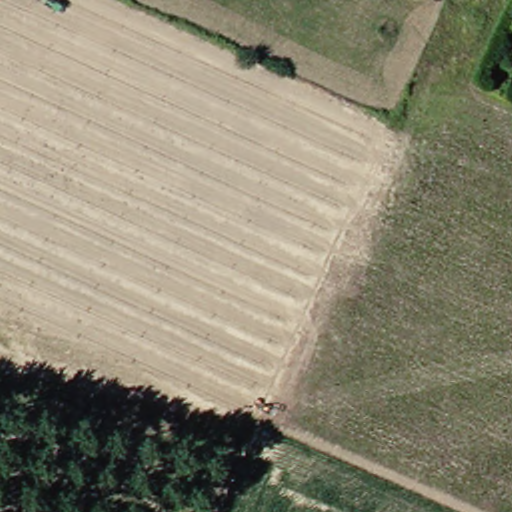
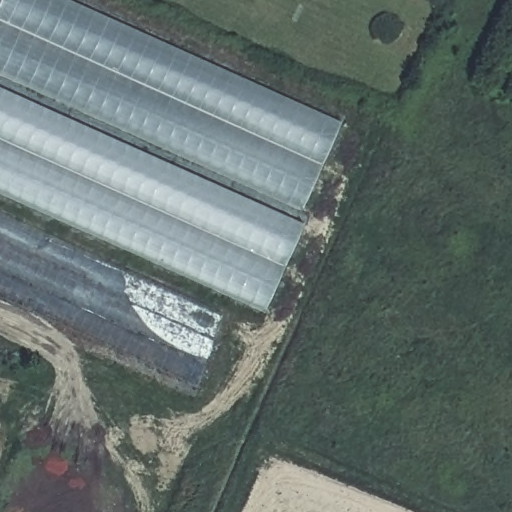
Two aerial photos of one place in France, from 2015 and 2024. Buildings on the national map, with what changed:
new [(342,125),(264,311),(0,196),(0,0),(69,0),(342,125)]
new [(195,388),(0,301),(0,218),(222,317),(195,388)]

